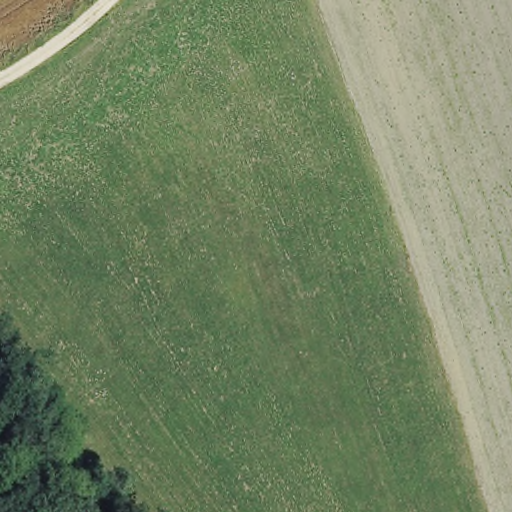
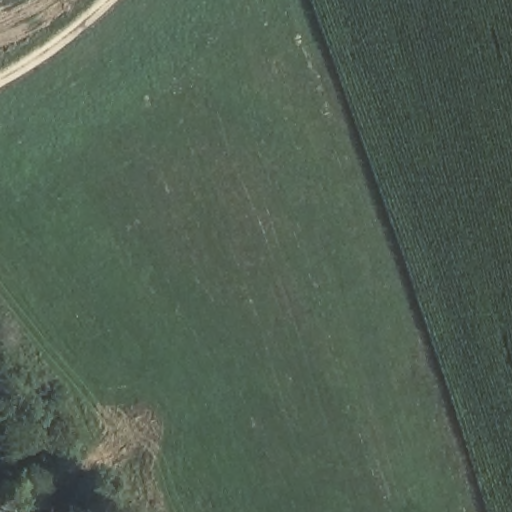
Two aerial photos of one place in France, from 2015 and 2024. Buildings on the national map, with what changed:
[]

